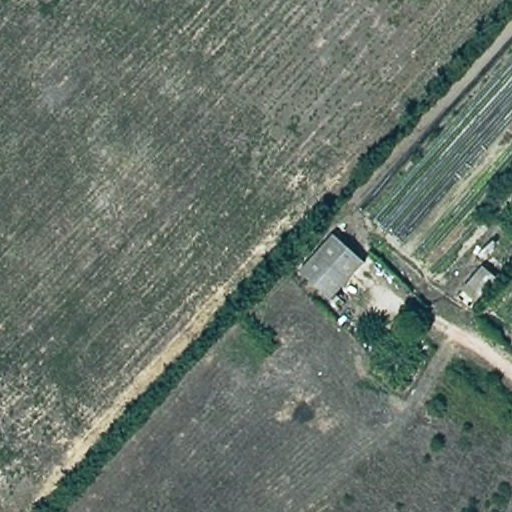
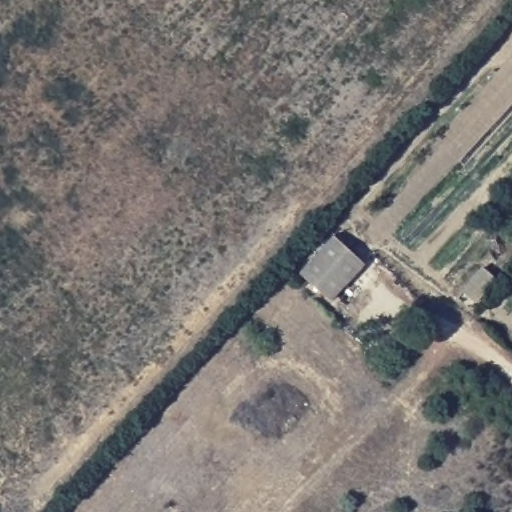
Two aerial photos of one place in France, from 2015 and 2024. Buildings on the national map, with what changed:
unchanged [(335,236),(365,263),(330,302),(300,275),(335,236)]

